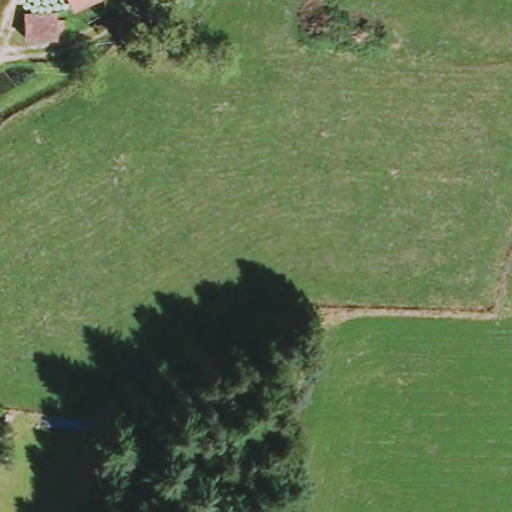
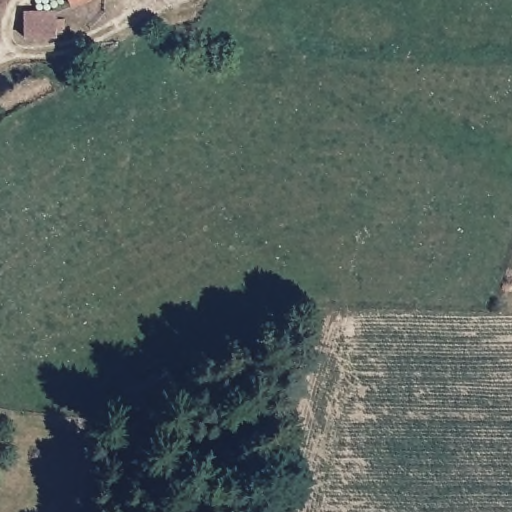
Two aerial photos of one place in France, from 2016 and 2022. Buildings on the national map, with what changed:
unchanged [(73,0),(107,0),(78,12),(73,0)]
unchanged [(26,39),(23,14),(52,10),(55,37),(26,39)]

